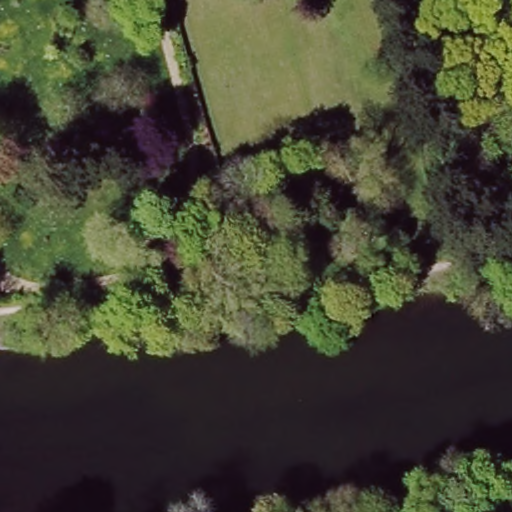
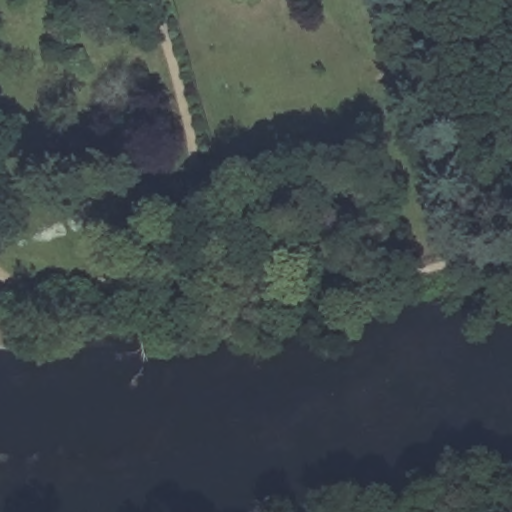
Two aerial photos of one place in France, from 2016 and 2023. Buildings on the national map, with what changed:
unchanged [(75,325),(104,324),(105,335),(107,353),(77,355),(75,339),(75,325)]

